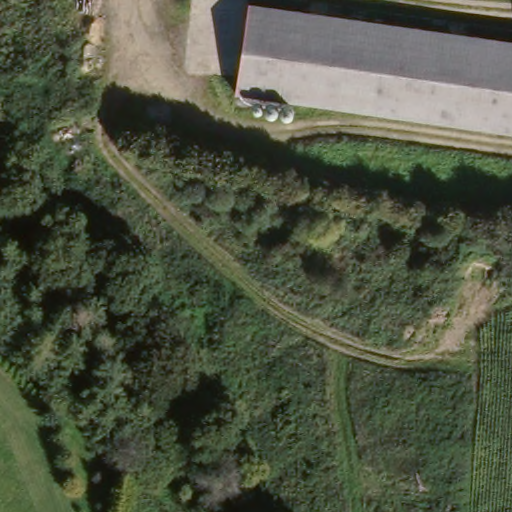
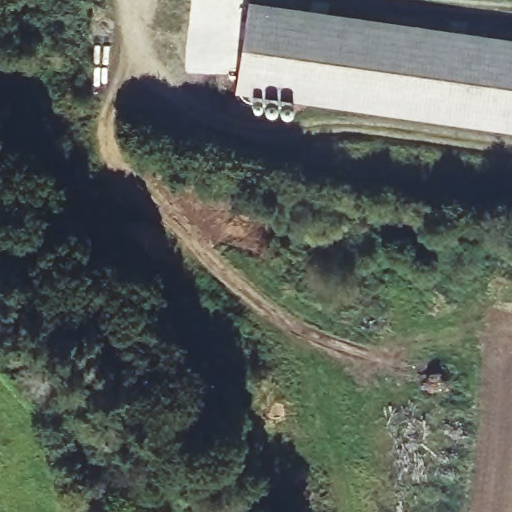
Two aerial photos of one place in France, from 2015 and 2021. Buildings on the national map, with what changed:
unchanged [(244,22),(244,21),(512,52),(512,140),(254,111),(234,109),(244,22)]

